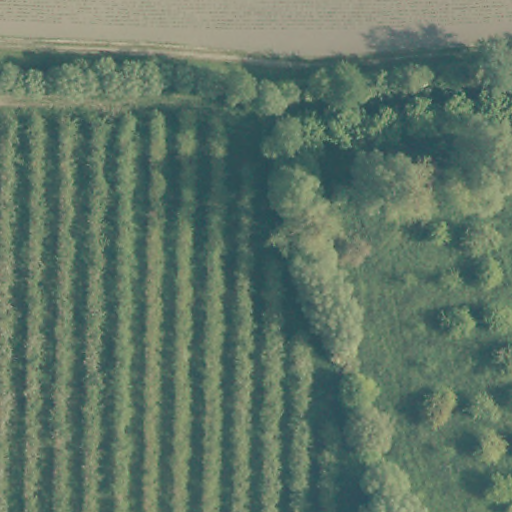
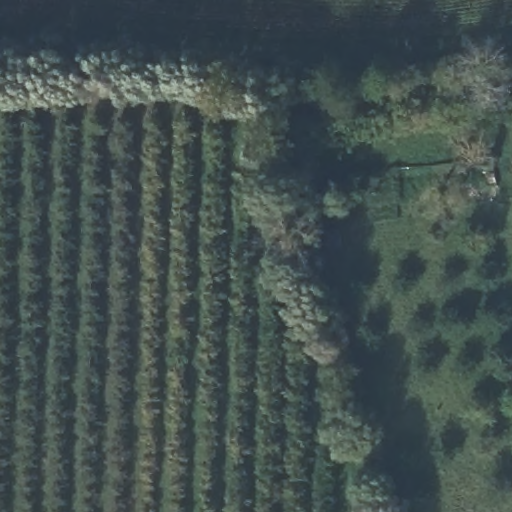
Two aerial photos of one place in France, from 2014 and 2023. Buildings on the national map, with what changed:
[]

